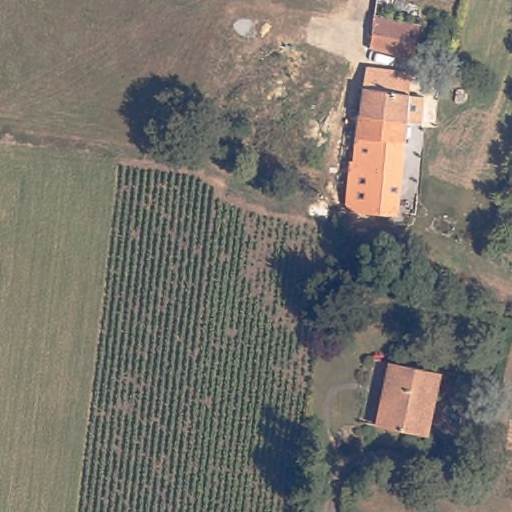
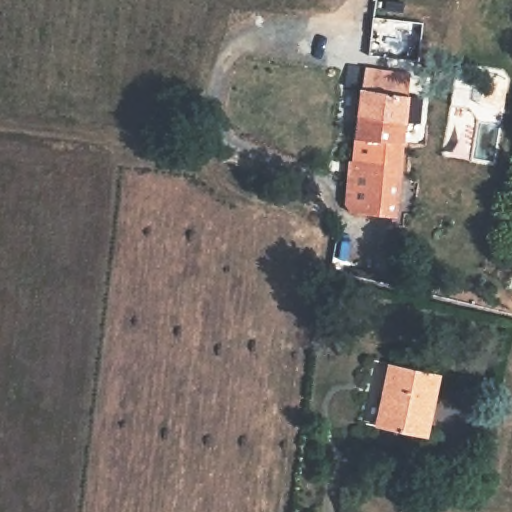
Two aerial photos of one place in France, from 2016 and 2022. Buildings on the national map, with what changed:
unchanged [(375,17),(413,25),(411,39),(416,40),(412,60),(378,52),(372,42),(375,17)]
unchanged [(344,204),(348,160),(351,160),(367,65),(412,70),(400,169),(397,215),(351,211),(344,204)]
unchanged [(337,272),(337,256),(355,258),(355,274),(337,272)]
unchanged [(379,424),(390,360),(436,368),(424,432),(379,424)]

